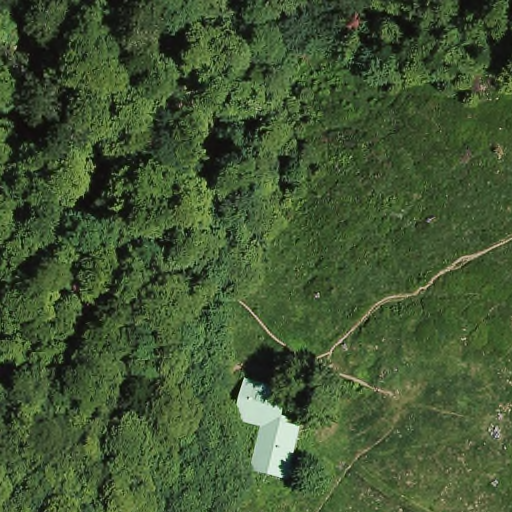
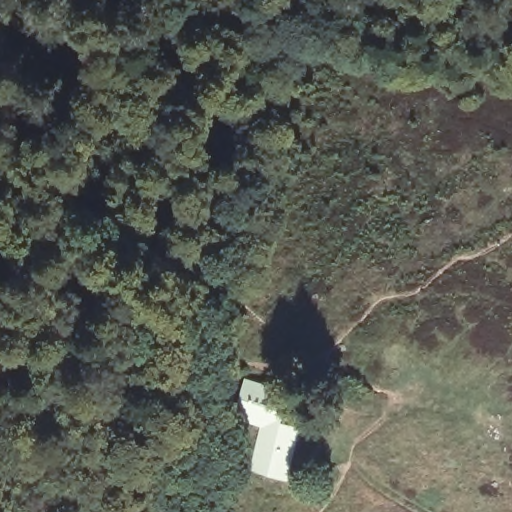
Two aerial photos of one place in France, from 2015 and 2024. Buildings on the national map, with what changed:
unchanged [(235,419),(241,382),(290,390),(286,416),(267,413),(263,424),(235,419)]
unchanged [(272,481),(253,477),(255,465),(263,424),(267,413),(286,416),(300,418),(292,474),(275,471),(272,481)]

